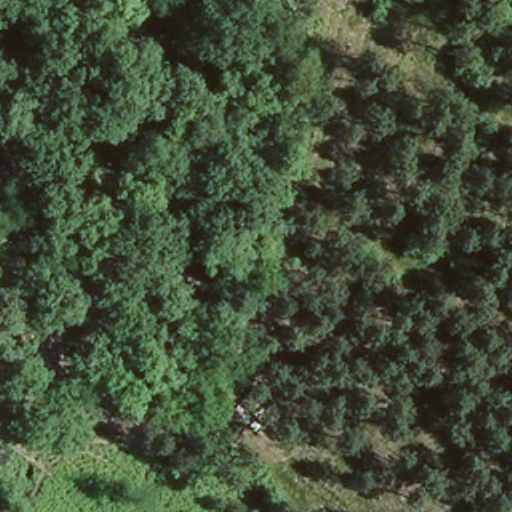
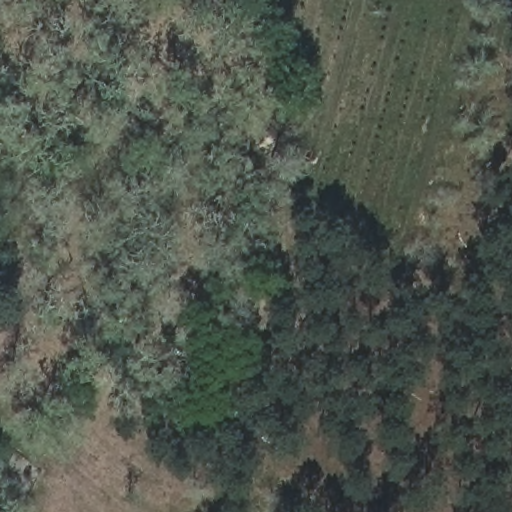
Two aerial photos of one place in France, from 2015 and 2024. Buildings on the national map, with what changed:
[]

